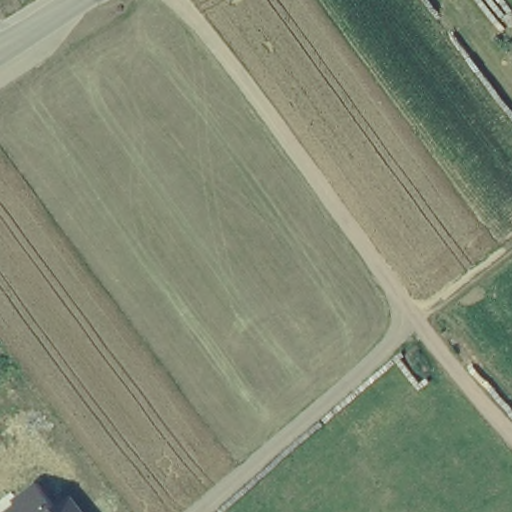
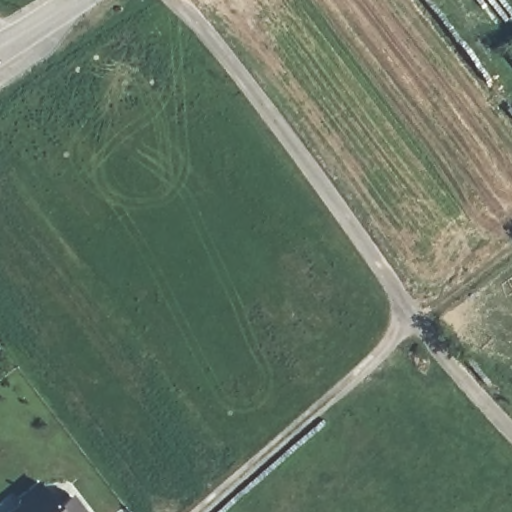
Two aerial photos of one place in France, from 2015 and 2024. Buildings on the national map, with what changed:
unchanged [(10,500),(39,481),(59,506),(72,493),(85,512),(8,512),(15,507),(10,500)]

